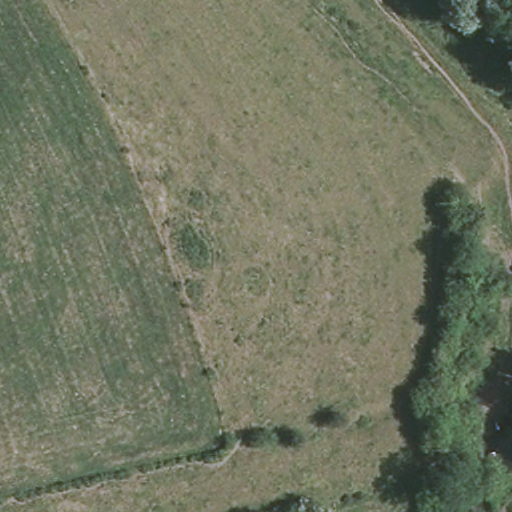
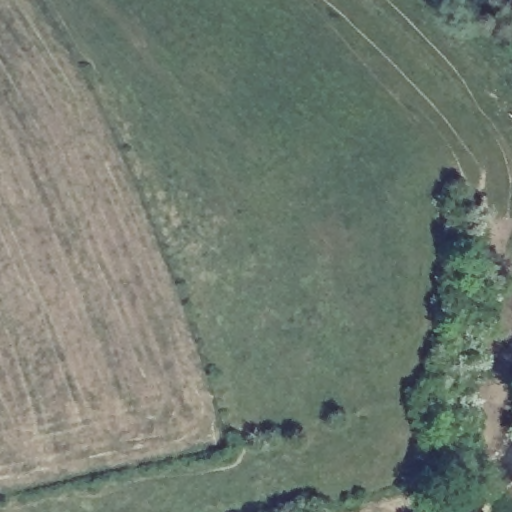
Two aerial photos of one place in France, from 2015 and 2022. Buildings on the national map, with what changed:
[]

